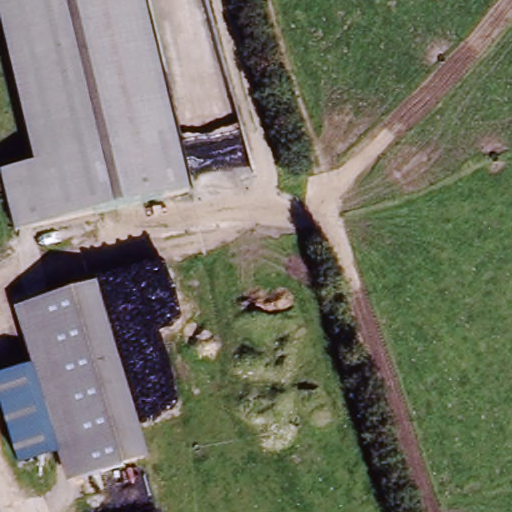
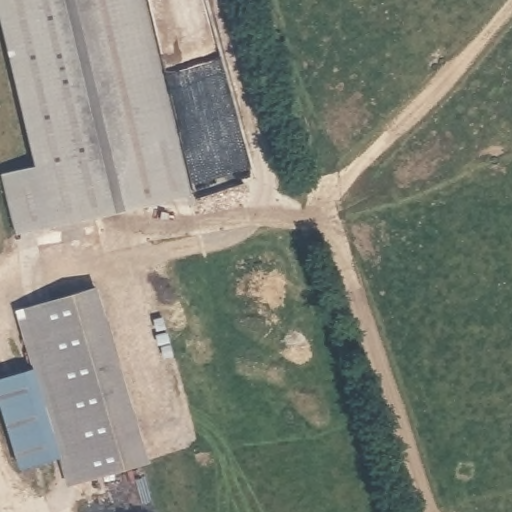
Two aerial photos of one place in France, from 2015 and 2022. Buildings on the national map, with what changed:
unchanged [(32,168),(1,0),(147,0),(184,200),(8,236),(0,191),(0,174),(32,168)]
unchanged [(20,467),(0,401),(0,372),(29,357),(20,309),(89,283),(140,453),(64,483),(55,455),(20,467)]

